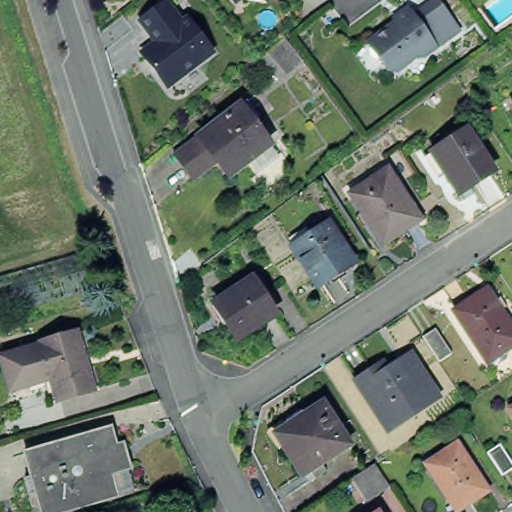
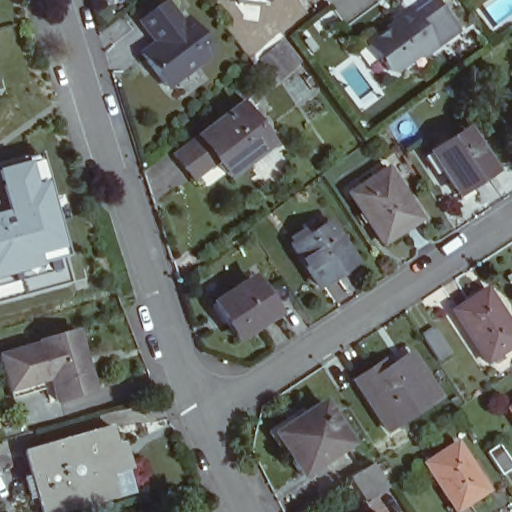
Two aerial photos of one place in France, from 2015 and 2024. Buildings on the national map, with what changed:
unchanged [(231,0),(239,0),(234,4),(231,0)]
unchanged [(264,4),(239,0),(264,0),(264,4)]
unchanged [(435,0),(458,31),(434,49),(411,17),(435,0)]
unchanged [(163,9),(180,31),(187,26),(211,58),(165,93),(141,61),(157,49),(140,26),(163,9)]
unchanged [(371,41),(408,14),(411,17),(434,49),(421,58),(418,55),(394,72),(387,72),(382,65),(367,44),(371,41)]
unchanged [(259,61),(270,51),(282,39),(300,62),(288,73),(277,82),(259,61)]
unchanged [(186,172),(173,157),(198,138),(245,102),(251,112),(246,116),(265,143),(244,159),(247,162),(227,177),(216,162),(192,180),(186,172)]
unchanged [(510,105),(512,103),(512,109),(510,105)]
unchanged [(446,181),(437,166),(428,154),(434,149),(463,131),(490,172),(468,187),(455,195),(446,181)]
new [(0,205),(0,169),(14,165),(12,161),(39,155),(66,257),(0,275),(0,213),(2,212),(0,205)]
unchanged [(383,245),(353,193),(390,170),(418,215),(421,221),(405,231),(383,245)]
unchanged [(317,290),(300,265),(299,265),(291,251),(326,228),(347,261),(352,268),(342,273),(317,290)]
unchanged [(72,282),(0,302),(0,275),(66,257),(72,282)]
unchanged [(278,320),(240,342),(217,307),(256,283),(278,320)]
unchanged [(512,323),(512,349),(491,363),(456,312),(490,290),(512,323)]
unchanged [(92,388),(47,402),(39,382),(0,393),(0,347),(69,324),(92,388)]
unchanged [(441,402),(391,435),(358,386),(377,373),(381,379),(412,358),(441,402)]
unchanged [(304,480),(278,438),(326,407),(354,448),(304,480)]
unchanged [(106,459),(116,499),(72,512),(41,512),(25,453),(112,427),(120,456),(106,459)]
unchanged [(491,490),(459,511),(427,463),(460,442),(491,490)]
unchanged [(365,500),(350,477),(372,463),(387,486),(365,500)]

